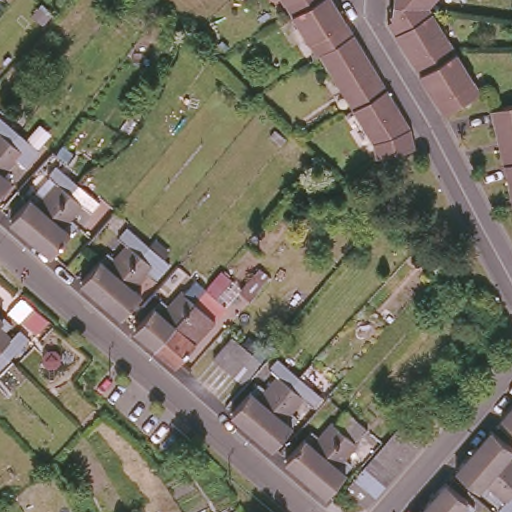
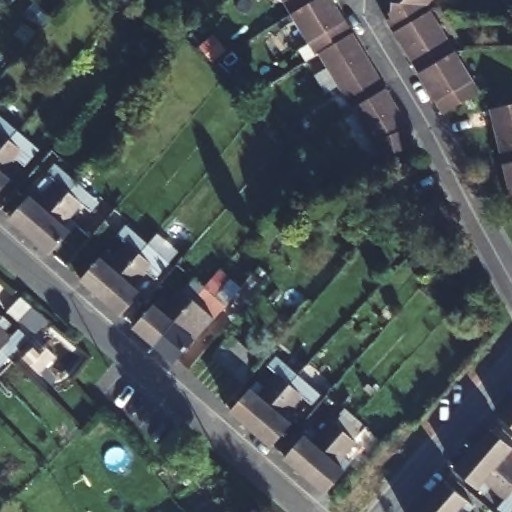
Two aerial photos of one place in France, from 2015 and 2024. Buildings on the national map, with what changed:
unchanged [(338,0),(397,96),(396,94),(337,44),(292,5),(289,0),(338,0)]
unchanged [(474,92),(439,114),(427,95),(387,33),(382,23),(385,20),(382,16),(385,14),(386,0),(426,0),(421,5),(474,92)]
unchanged [(337,44),(396,94),(397,96),(414,122),(420,145),(381,154),(375,130),(372,130),(322,48),(319,49),(292,5),(337,44)]
unchanged [(491,109),(512,104),(512,199),(491,109)]
unchanged [(0,113),(19,129),(0,151),(0,113)]
unchanged [(44,166),(32,155),(18,172),(27,179),(1,209),(0,209),(0,151),(19,129),(51,158),(44,166)]
unchanged [(44,194),(59,179),(50,172),(58,163),(79,182),(31,236),(10,218),(37,188),(44,194)]
unchanged [(102,204),(96,212),(84,200),(70,216),(78,224),(52,254),(31,236),(79,182),(102,204)]
unchanged [(116,207),(123,214),(107,233),(100,226),(116,207)]
unchanged [(101,297),(82,280),(108,249),(116,257),(129,242),(120,232),(127,224),(148,243),(101,297)]
unchanged [(171,264),(164,272),(154,263),(141,278),(147,284),(122,314),(101,297),(148,243),(171,264)]
unchanged [(176,323),(172,319),(164,329),(170,335),(159,347),(135,327),(162,297),(169,304),(194,277),(207,288),(176,323)]
unchanged [(219,298),(194,327),(201,334),(176,362),(159,347),(170,335),(164,329),(172,319),(176,323),(207,288),(219,298)]
unchanged [(0,317),(2,319),(5,317),(12,324),(5,332),(14,340),(12,343),(24,353),(14,363),(0,349),(0,317)]
unchanged [(242,383),(212,354),(231,335),(260,363),(242,383)]
unchanged [(0,370),(0,349),(14,363),(3,373),(0,370)]
unchanged [(253,429),(233,412),(257,384),(265,391),(280,374),(271,365),(278,358),(299,376),(253,429)]
unchanged [(322,397),(315,406),(304,396),(289,411),(297,419),(273,447),(253,429),(299,376),(322,397)]
unchanged [(501,417),(512,404),(512,426),(501,417)]
unchanged [(307,477),(287,459),(312,430),(319,436),(344,408),(356,418),(307,477)]
unchanged [(371,431),(345,459),(354,465),(328,494),(307,477),(356,418),(371,431)]
unchanged [(405,419),(425,437),(365,506),(358,499),(345,488),(405,419)]
unchanged [(472,449),(490,429),(512,449),(512,459),(511,461),(512,461),(512,483),(472,449)]
unchanged [(511,512),(498,512),(506,504),(489,488),(483,494),(455,470),(472,449),(512,483),(512,511),(511,512)]
unchanged [(427,502),(445,482),(472,507),(468,512),(439,512),(427,502)]
unchanged [(427,502),(439,512),(418,512),(427,502)]

